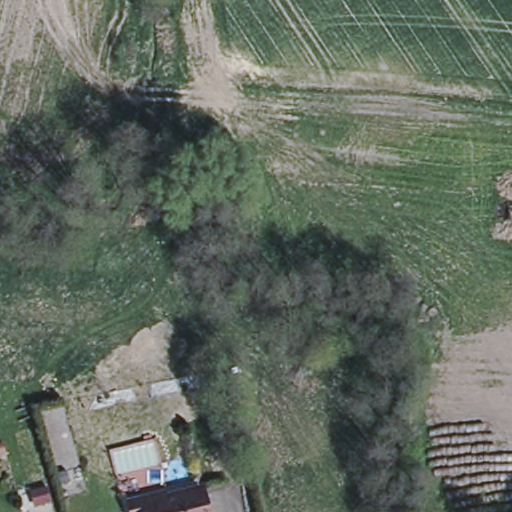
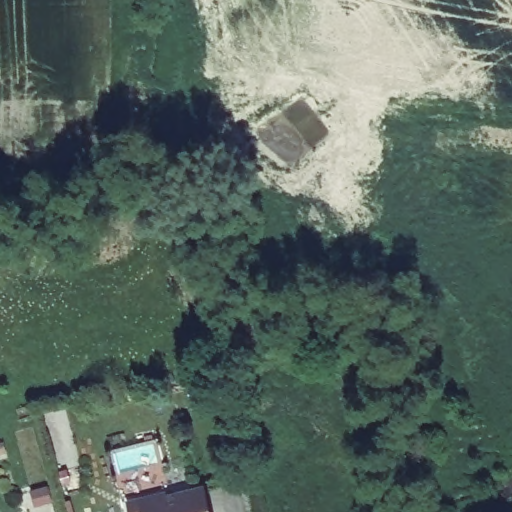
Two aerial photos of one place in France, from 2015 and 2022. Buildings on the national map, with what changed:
unchanged [(170,500),(207,490),(213,512),(137,512),(135,506),(148,502),(168,496),(170,500)]

